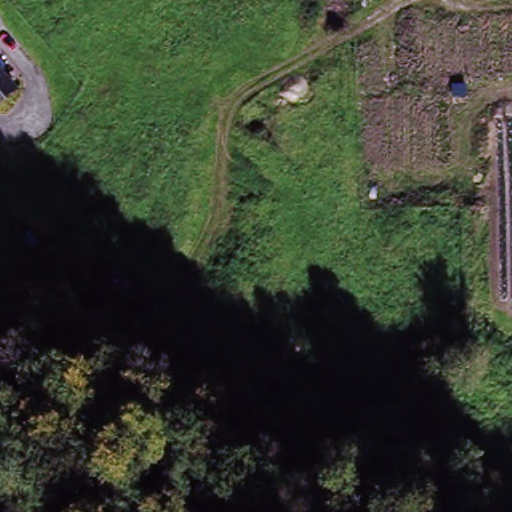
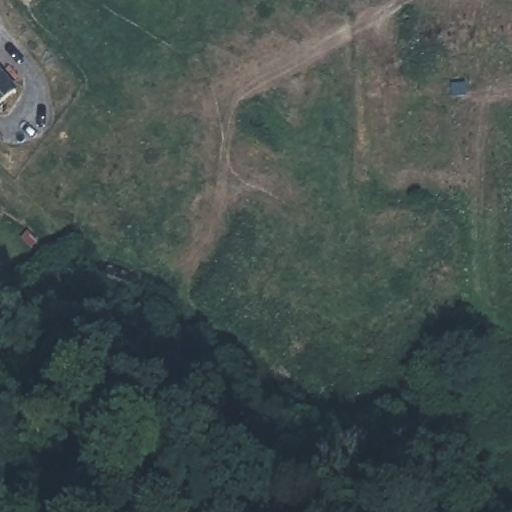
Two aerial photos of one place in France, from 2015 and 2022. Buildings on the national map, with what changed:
unchanged [(0,99),(0,70),(15,86),(0,99)]

